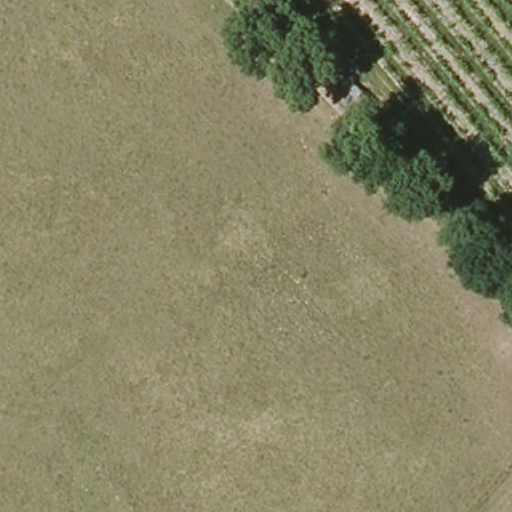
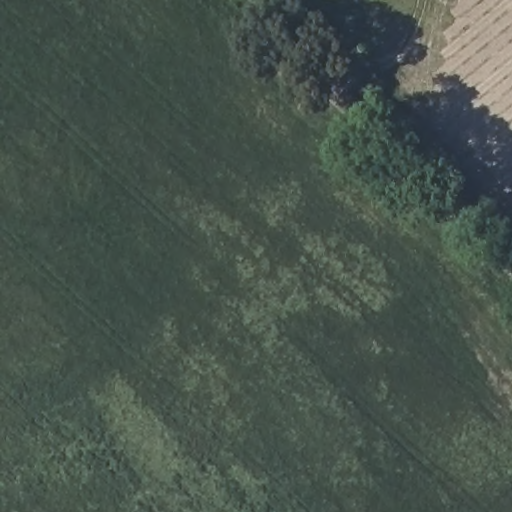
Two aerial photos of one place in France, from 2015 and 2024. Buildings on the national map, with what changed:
[]

